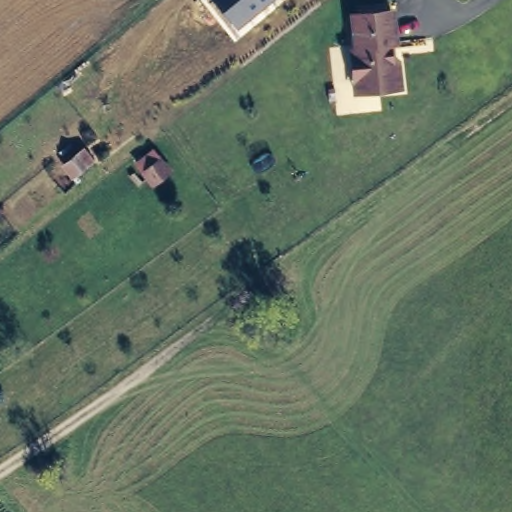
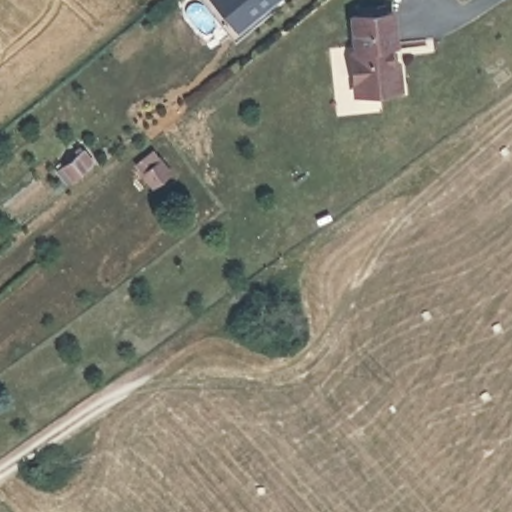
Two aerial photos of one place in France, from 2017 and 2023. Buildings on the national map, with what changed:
unchanged [(211,0),(272,0),(236,30),(211,0)]
unchanged [(352,82),(350,82),(346,50),(352,50),(347,11),(394,5),(397,43),(391,45),(392,56),(399,57),(402,89),(352,95),(352,82)]
unchanged [(60,165),(77,150),(88,165),(70,180),(60,165)]
unchanged [(163,156),(174,173),(154,187),(145,172),(163,156)]

